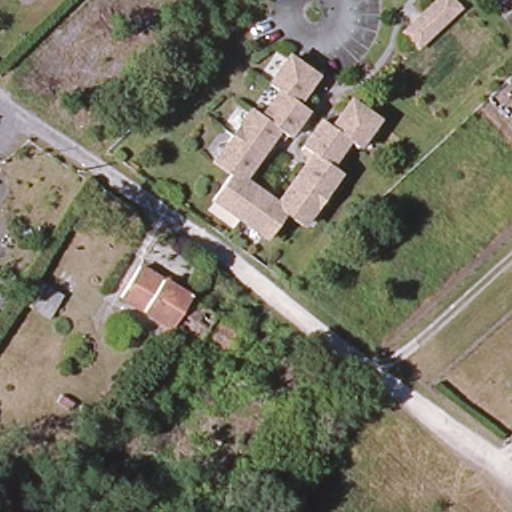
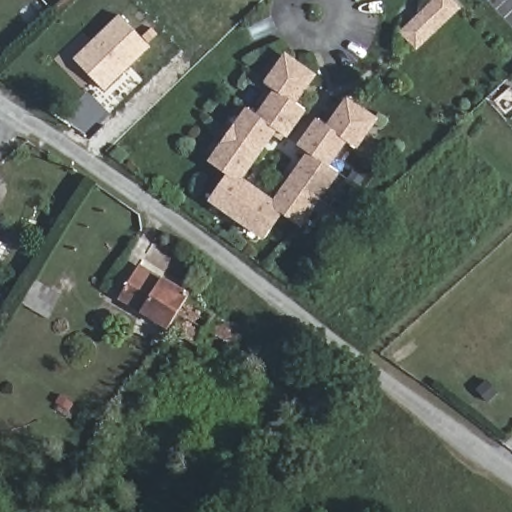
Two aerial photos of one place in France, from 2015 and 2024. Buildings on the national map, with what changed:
unchanged [(455,0),(460,5),(417,46),(403,32),(435,0),(455,0)]
new [(106,89),(78,60),(122,18),(150,46),(106,89)]
unchanged [(309,73),(291,99),(301,106),(281,135),(271,128),(236,178),(275,204),(309,154),(298,147),(318,118),(328,125),(347,99),(372,116),(353,144),(342,136),(325,161),(335,168),(298,222),(280,209),(263,234),(210,198),(227,173),(210,161),(247,108),(257,114),(275,89),(265,83),(283,55),(309,73)]
unchanged [(109,293),(129,263),(180,297),(161,326),(109,293)]
unchanged [(46,322),(22,307),(37,284),(60,299),(46,322)]
unchanged [(180,297),(244,338),(221,366),(161,326),(180,297)]

